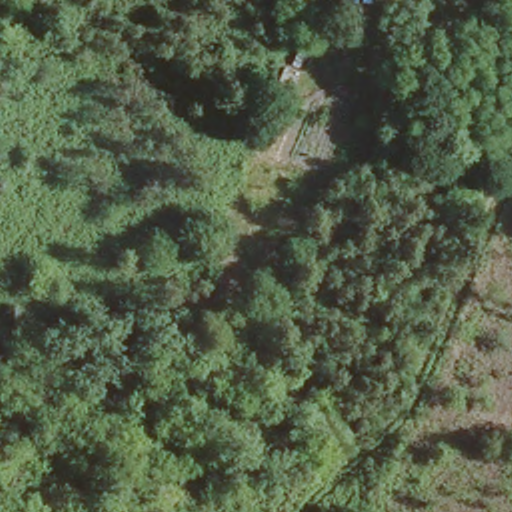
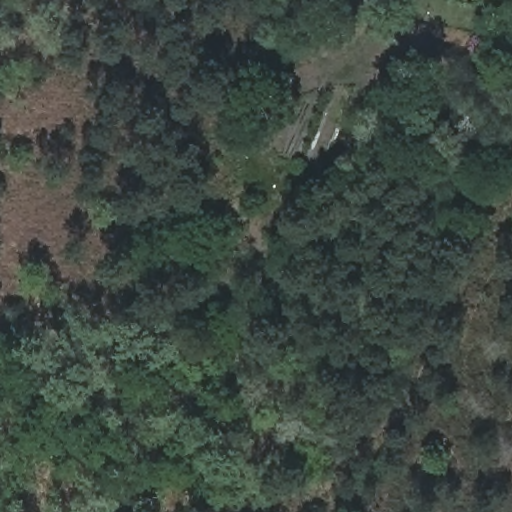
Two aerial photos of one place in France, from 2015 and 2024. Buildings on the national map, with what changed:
[]

